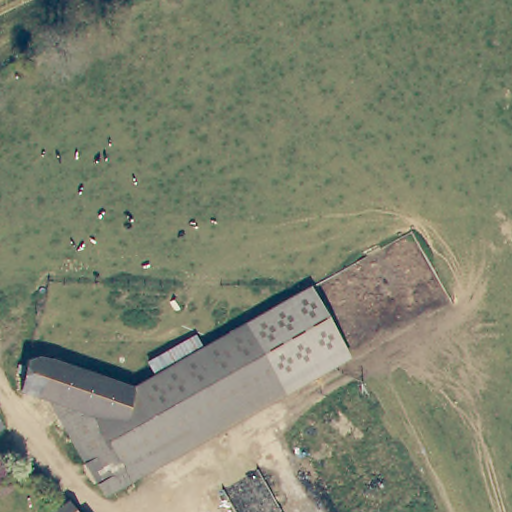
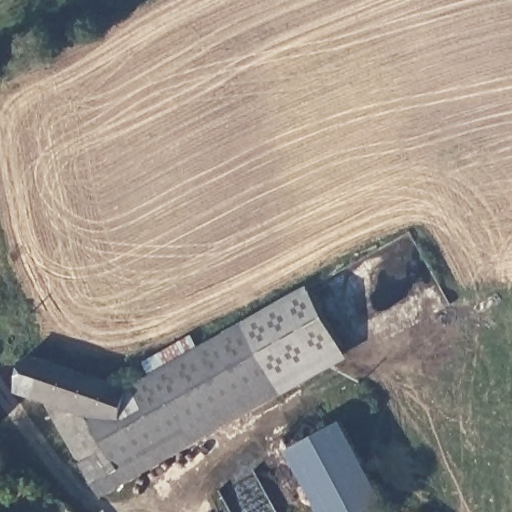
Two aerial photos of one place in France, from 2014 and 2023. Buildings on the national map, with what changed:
unchanged [(127,425),(137,390),(202,352),(277,310),(316,288),(347,345),(237,407),(129,469),(102,484),(53,401),(99,416),(127,425)]
unchanged [(24,392),(31,361),(41,359),(137,390),(127,425),(99,416),(53,401),(40,397),(24,392)]
new [(367,512),(324,512),(291,448),(345,419),(388,501),(367,512)]
unchanged [(79,512),(39,512),(64,493),(79,512)]

